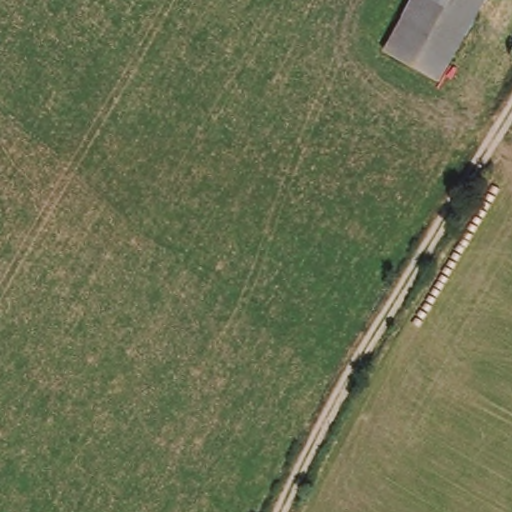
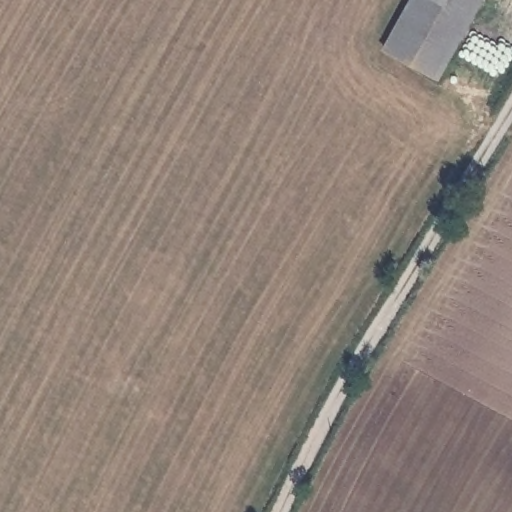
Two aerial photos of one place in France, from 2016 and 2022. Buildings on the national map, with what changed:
unchanged [(395,58),(425,0),(491,0),(446,85),(395,58)]

